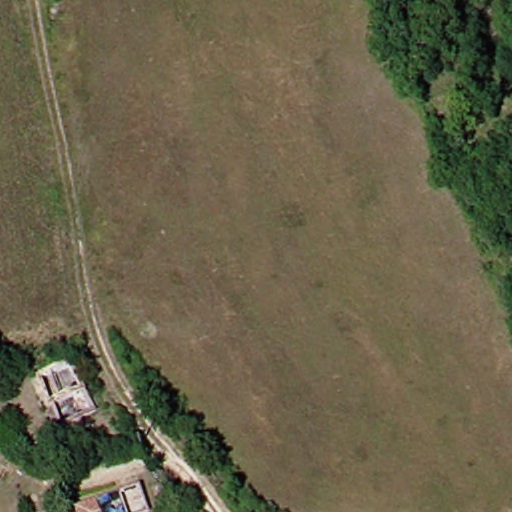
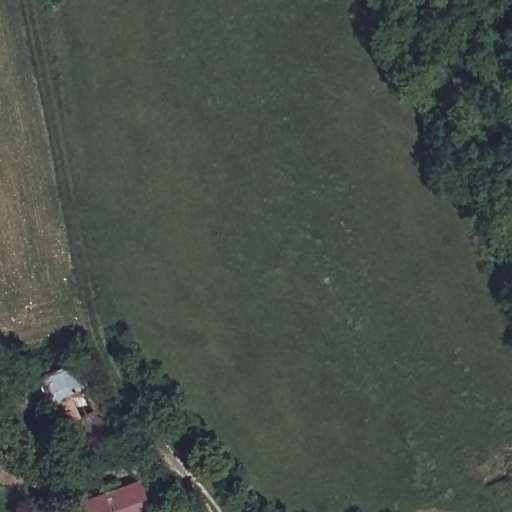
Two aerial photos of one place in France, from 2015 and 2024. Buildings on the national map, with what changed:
unchanged [(44,376),(77,360),(100,408),(65,425),(44,376)]
new [(141,480),(151,512),(80,512),(77,501),(141,480)]

